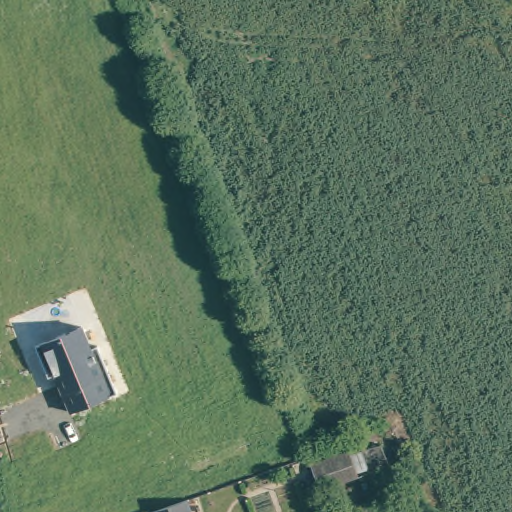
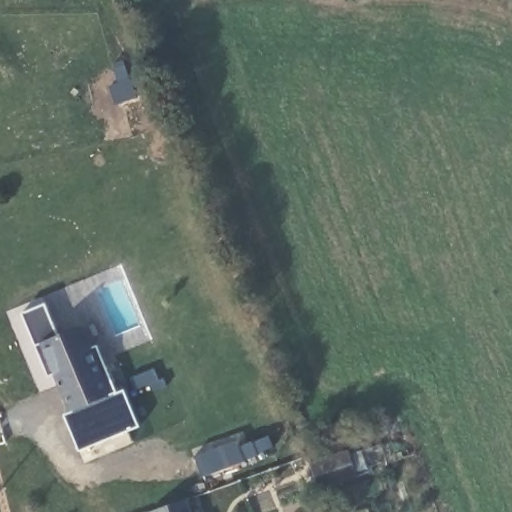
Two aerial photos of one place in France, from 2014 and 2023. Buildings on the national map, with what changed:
unchanged [(36,346),(23,314),(46,305),(59,336),(36,346)]
unchanged [(98,345),(116,389),(69,411),(53,372),(49,375),(36,346),(83,325),(93,347),(98,345)]
new [(79,449),(64,414),(69,411),(116,389),(123,386),(137,425),(79,449)]
new [(244,461),(203,476),(195,457),(236,440),(239,447),(253,440),(258,455),(244,461)]
unchanged [(320,458),(356,443),(367,467),(331,482),(320,458)]
unchanged [(189,497),(195,512),(154,512),(153,509),(189,497)]

